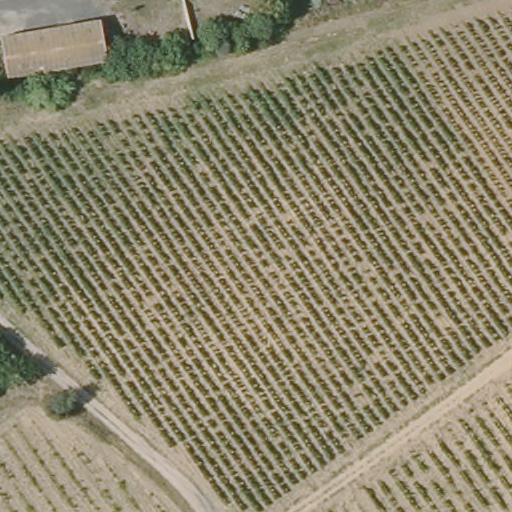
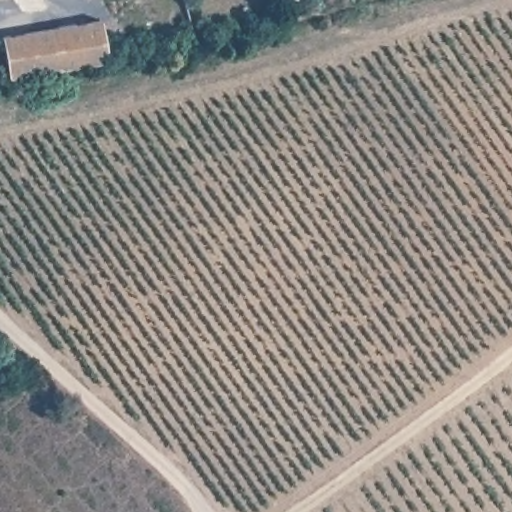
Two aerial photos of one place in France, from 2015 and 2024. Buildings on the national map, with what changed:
unchanged [(110,53),(14,73),(7,37),(102,18),(105,34),(110,53)]

